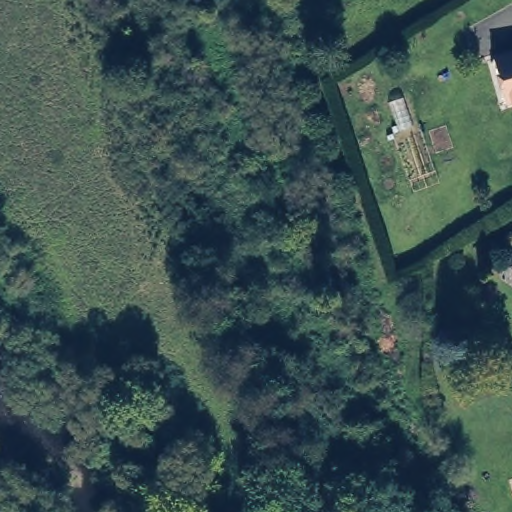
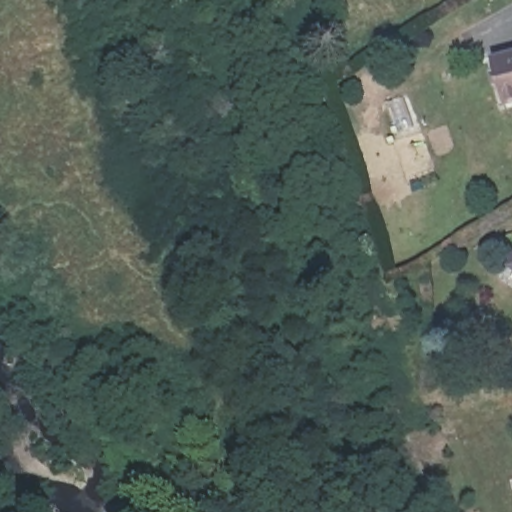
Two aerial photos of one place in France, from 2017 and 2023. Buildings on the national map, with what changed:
unchanged [(494,52),(512,47),(512,92),(506,94),(494,52)]

